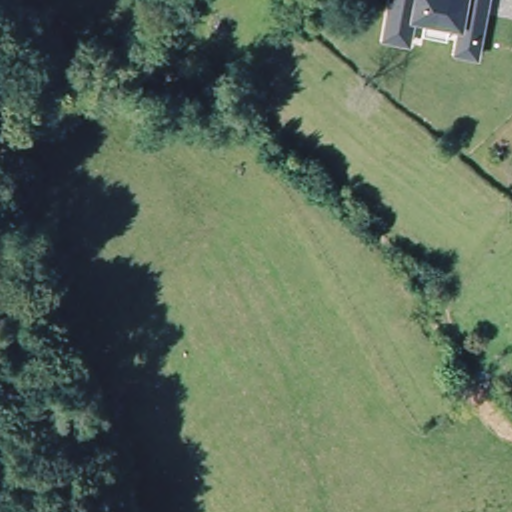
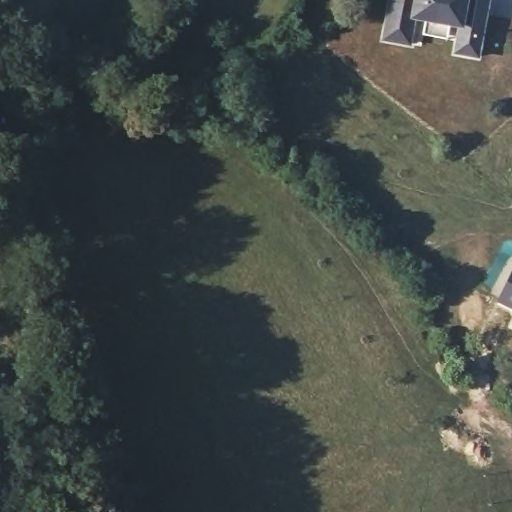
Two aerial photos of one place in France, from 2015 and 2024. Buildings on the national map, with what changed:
unchanged [(382,41),(390,0),(490,0),(479,59),(454,55),(458,28),(449,26),(446,39),(422,34),(424,22),(416,20),(411,46),(382,41)]
new [(512,311),(495,302),(512,266),(512,311)]

